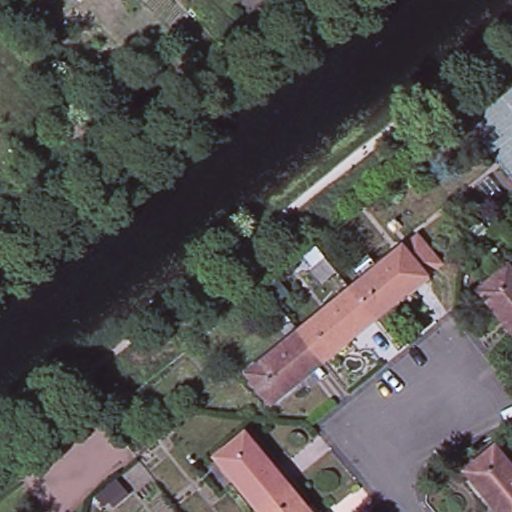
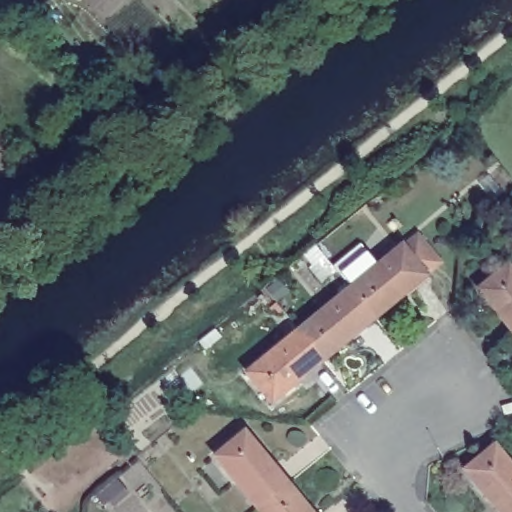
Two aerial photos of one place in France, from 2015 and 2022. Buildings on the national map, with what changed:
unchanged [(72,3),(68,0),(74,0),(72,3)]
unchanged [(370,323),(347,294),(400,251),(414,241),(437,270),(422,280),(423,281),(370,323)]
unchanged [(512,332),(479,291),(510,265),(512,268),(512,332)]
unchanged [(318,365),(295,335),(347,294),(370,323),(318,365)]
unchanged [(242,377),(295,335),(318,365),(266,407),(242,377)]
unchanged [(287,486),(282,490),(256,512),(211,456),(233,440),(244,432),(287,486)]
unchanged [(512,512),(498,512),(465,472),(496,447),(512,467),(512,512)]
unchanged [(256,512),(282,490),(287,486),(308,512),(256,512)]

